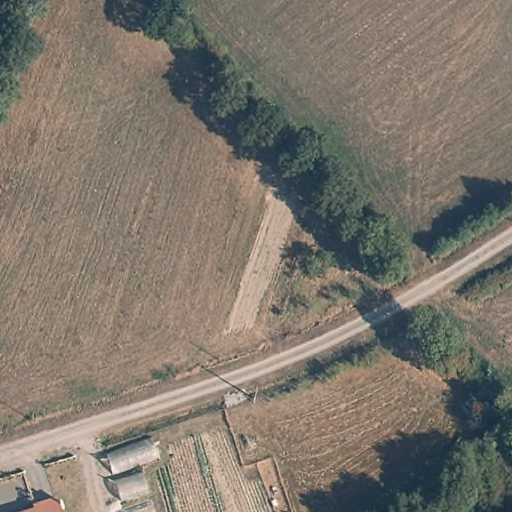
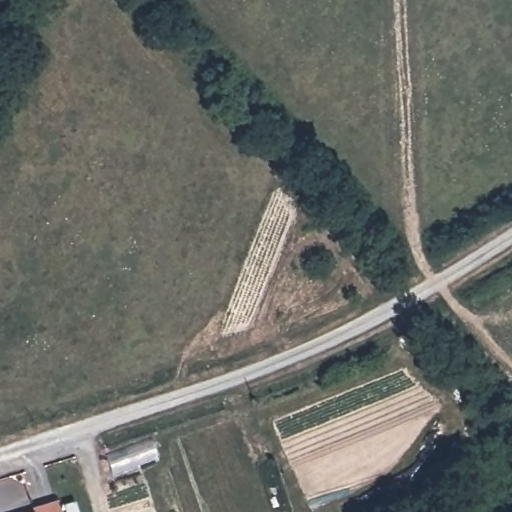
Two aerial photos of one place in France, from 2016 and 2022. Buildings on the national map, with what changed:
unchanged [(57,500),(61,512),(34,512),(32,507),(57,500)]

